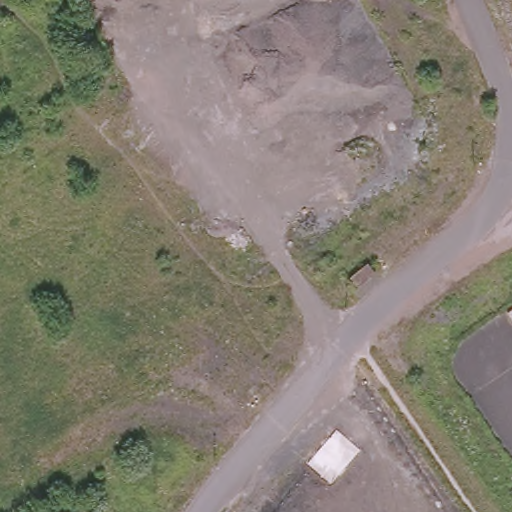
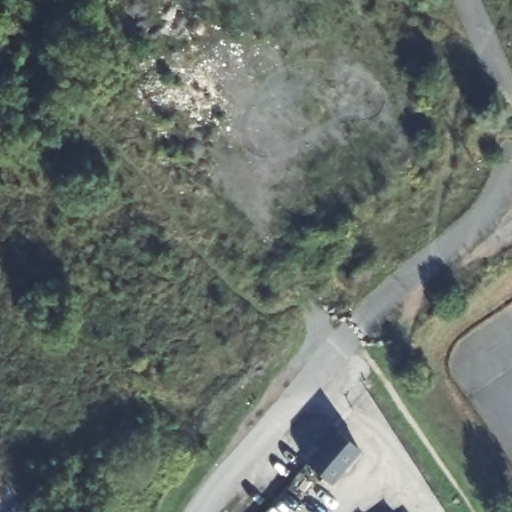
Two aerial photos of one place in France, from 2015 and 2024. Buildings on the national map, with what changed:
unchanged [(336,428),(359,449),(331,482),(307,462),(336,428)]

